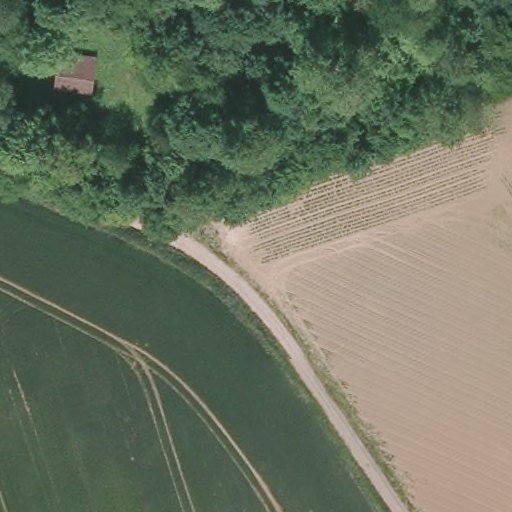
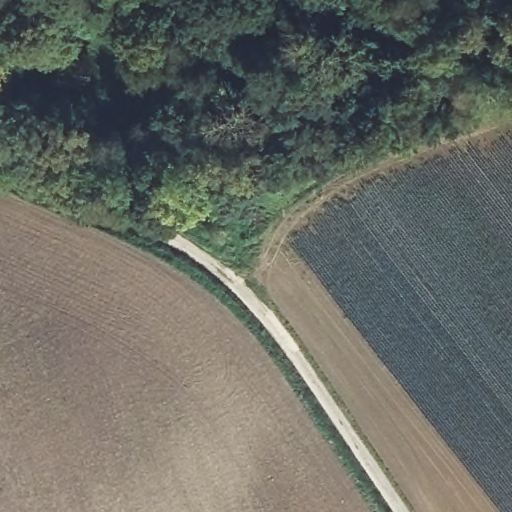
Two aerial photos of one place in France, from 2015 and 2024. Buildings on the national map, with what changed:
unchanged [(96,48),(95,84),(55,83),(58,46),(96,48)]

